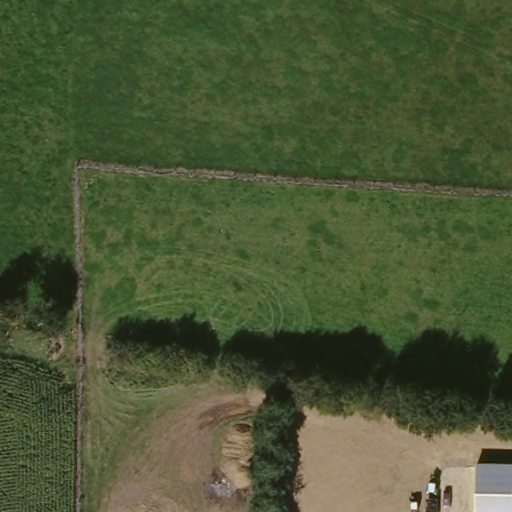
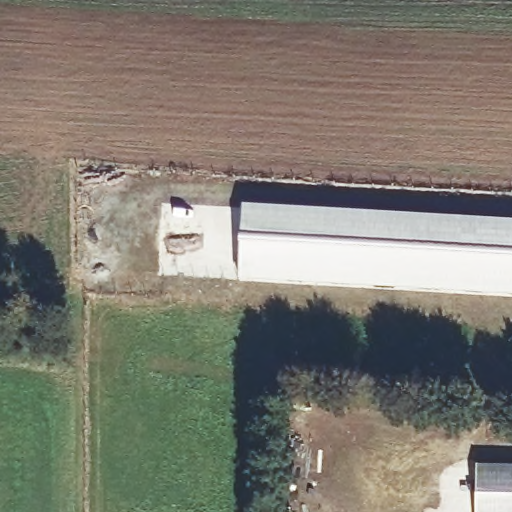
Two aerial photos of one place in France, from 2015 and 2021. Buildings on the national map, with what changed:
new [(512,223),(512,290),(237,274),(240,203),(512,223)]
unchanged [(512,512),(466,512),(470,462),(512,463),(512,512)]

